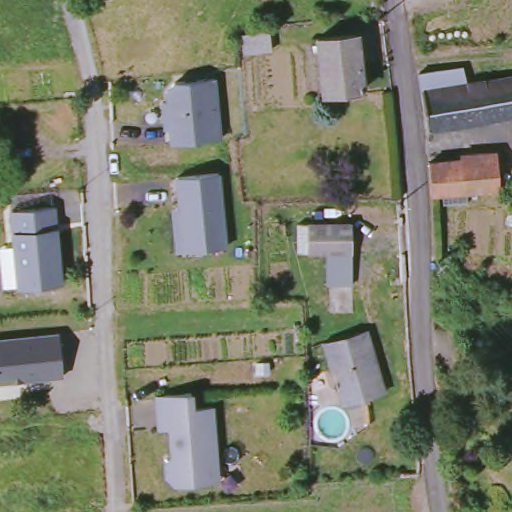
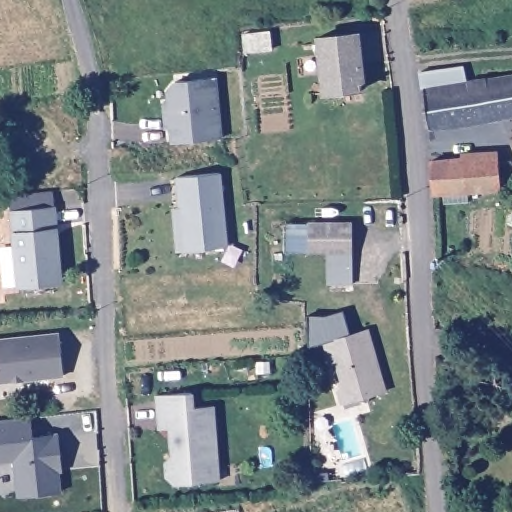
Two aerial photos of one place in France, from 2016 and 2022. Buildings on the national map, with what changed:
unchanged [(267,49),(242,50),(240,33),(265,29),(267,49)]
unchanged [(320,39),(357,35),(360,92),(324,95),(320,39)]
unchanged [(512,80),(512,117),(424,123),(419,70),(460,67),(462,84),(512,80)]
unchanged [(172,123),(167,124),(165,104),(170,103),(169,92),(177,83),(217,79),(222,139),(174,144),(172,123)]
unchanged [(430,162),(477,159),(480,153),(498,151),(500,189),(432,194),(430,162)]
unchanged [(174,209),(180,208),(179,177),(220,174),(225,247),(184,250),(177,250),(174,209)]
unchanged [(57,230),(62,284),(19,289),(12,212),(55,208),(57,230)]
unchanged [(309,219),(355,218),(355,249),(310,249),(309,219)]
unchanged [(325,317),(342,311),(349,335),(327,342),(310,346),(309,316),(325,317)]
unchanged [(371,402),(363,398),(345,404),(340,389),(345,382),(341,367),(335,369),(327,342),(370,329),(378,356),(382,372),(386,384),(388,391),(374,395),(371,402)]
unchanged [(62,335),(65,377),(0,383),(0,341),(62,335)]
unchanged [(204,481),(175,483),(168,476),(167,461),(172,454),(170,429),(160,428),(157,395),(192,392),(193,407),(214,405),(218,466),(219,479),(204,481)]
new [(32,418),(34,437),(60,434),(64,471),(60,472),(62,492),(17,496),(12,462),(0,463),(0,420),(32,418)]

